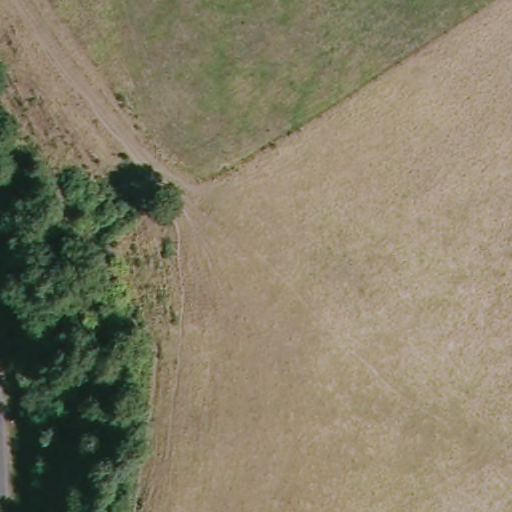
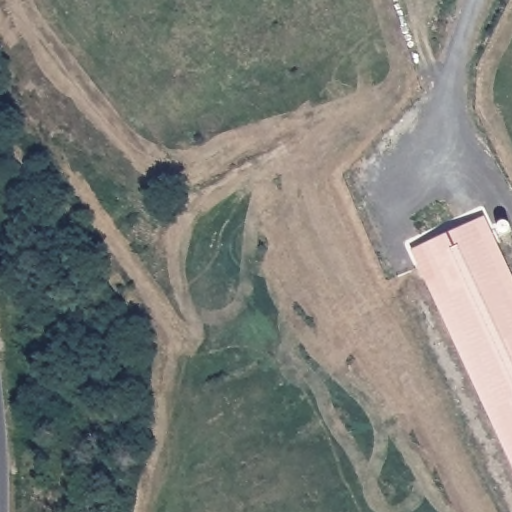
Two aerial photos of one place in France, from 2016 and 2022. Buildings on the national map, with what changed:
new [(412,250),(484,216),(512,276),(512,466),(412,250)]

